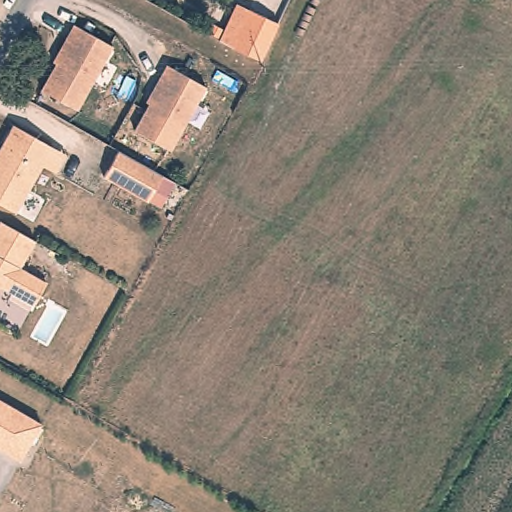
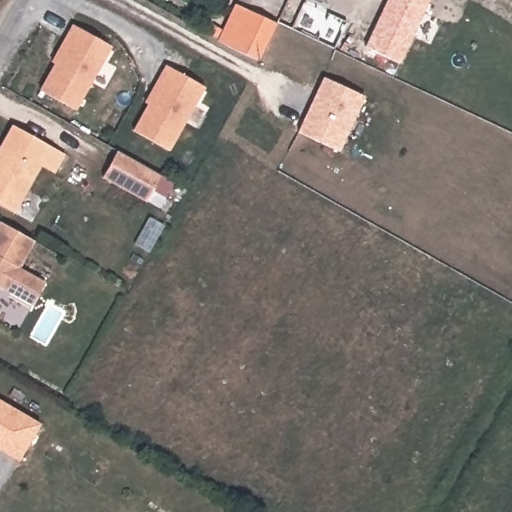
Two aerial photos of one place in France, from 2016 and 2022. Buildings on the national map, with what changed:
new [(386,0),(429,0),(423,13),(442,21),(432,44),(412,34),(401,63),(365,47),(386,0)]
unchanged [(218,44),(229,22),(237,5),(252,11),(280,23),(260,67),(218,44)]
unchanged [(79,111),(42,91),(56,64),(52,63),(73,25),(114,47),(79,111)]
unchanged [(174,151),(137,131),(152,104),(149,102),(169,65),(209,86),(174,151)]
new [(323,77),(365,96),(340,152),(297,132),(323,77)]
unchanged [(52,169),(41,163),(16,211),(0,203),(0,144),(11,123),(44,141),(62,151),(52,169)]
unchanged [(165,177),(151,204),(106,180),(120,153),(165,177)]
unchanged [(34,311),(0,293),(0,231),(34,248),(20,275),(45,289),(34,311)]
unchanged [(25,459),(0,444),(0,396),(46,422),(25,459)]

